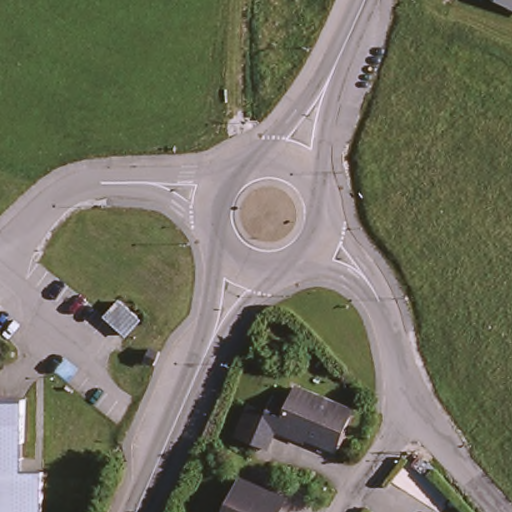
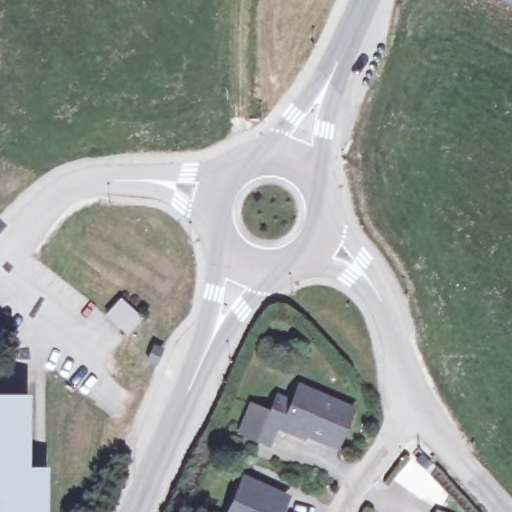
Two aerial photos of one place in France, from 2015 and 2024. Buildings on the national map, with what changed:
unchanged [(503,0),(512,0),(512,5),(503,0)]
unchanged [(128,329),(107,310),(121,294),(142,313),(128,329)]
unchanged [(138,382),(126,374),(131,368),(142,376),(138,382)]
unchanged [(310,381),(365,404),(348,442),(295,420),(292,424),(286,422),(279,439),(252,428),(263,399),(282,407),(289,390),(303,396),(310,381)]
unchanged [(0,394),(26,394),(25,436),(25,453),(25,465),(44,466),(44,494),(44,510),(44,512),(0,512),(0,394)]
unchanged [(247,474),(286,492),(277,512),(229,512),(247,474)]

